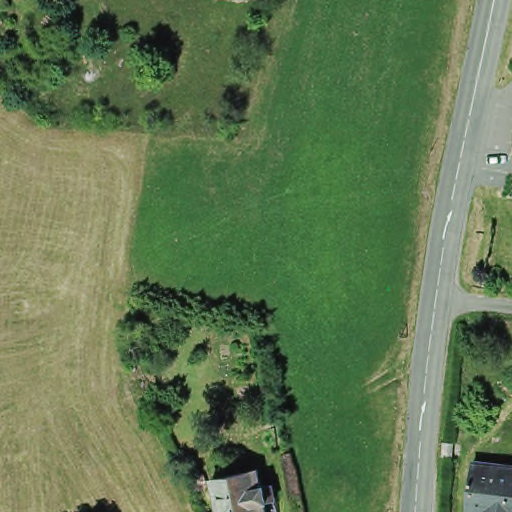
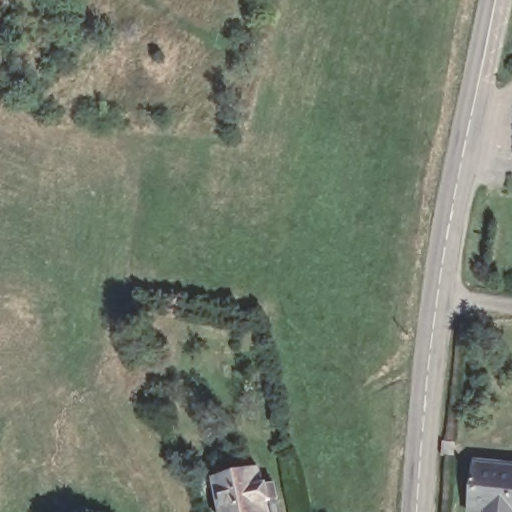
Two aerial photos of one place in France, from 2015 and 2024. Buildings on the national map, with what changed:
unchanged [(480,462),(512,466),(512,512),(473,512),(480,462)]
unchanged [(220,474),(264,464),(269,483),(279,480),(282,500),(273,503),(275,512),(228,512),(220,474)]

